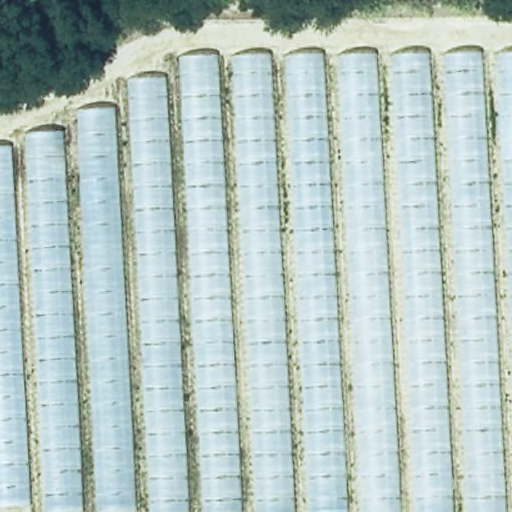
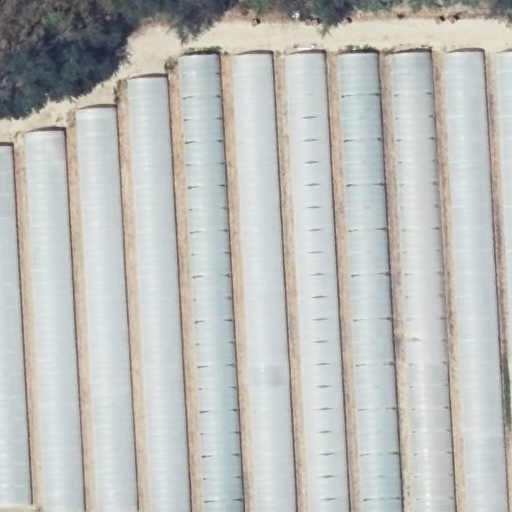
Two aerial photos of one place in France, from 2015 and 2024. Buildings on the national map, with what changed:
unchanged [(22,149),(22,135),(74,134),(75,112),(125,110),(125,81),(174,80),(175,57),(512,56),(512,512),(82,512),(0,506),(0,150),(22,149)]

